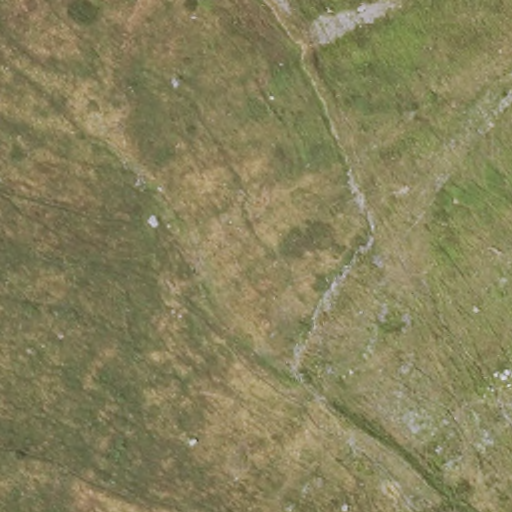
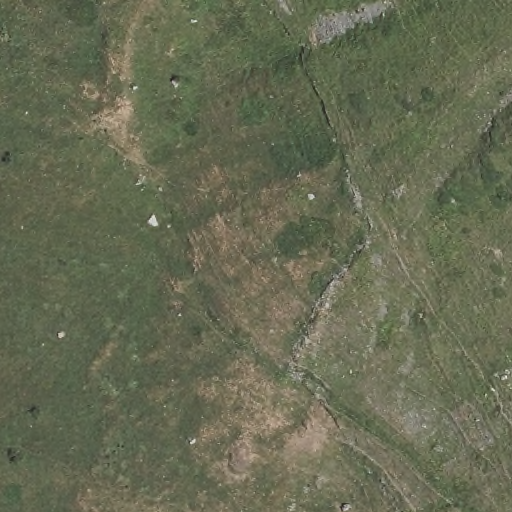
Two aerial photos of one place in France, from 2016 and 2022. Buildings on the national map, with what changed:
[]

